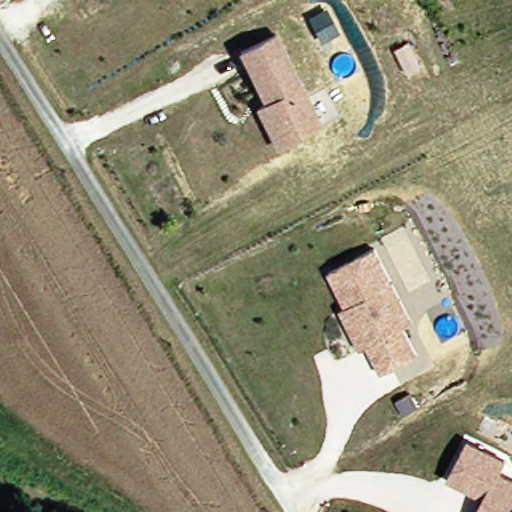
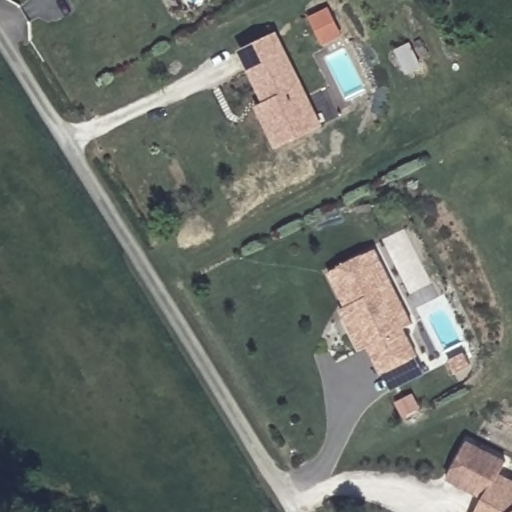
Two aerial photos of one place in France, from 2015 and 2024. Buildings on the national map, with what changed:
unchanged [(275,125),(263,104),(271,100),(263,85),(244,49),(278,31),(326,120),(297,135),(284,142),(275,125)]
unchanged [(345,320),(341,311),(346,309),(329,274),(373,252),(390,284),(411,327),(403,331),(417,359),(382,377),(368,349),(361,352),(358,345),(345,320)]
unchanged [(484,497),(448,478),(467,441),(504,460),(498,472),(512,480),(512,512),(476,512),(479,506),(484,497)]

